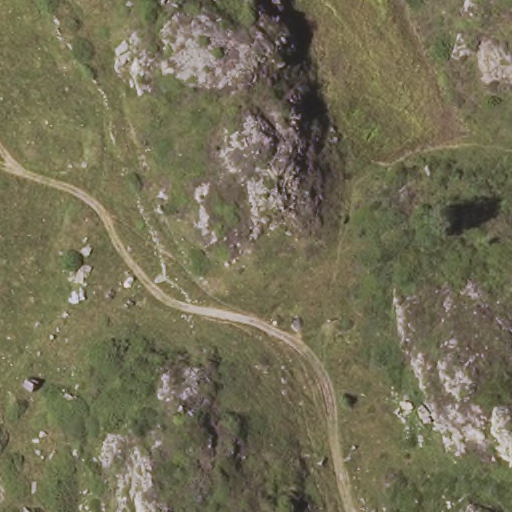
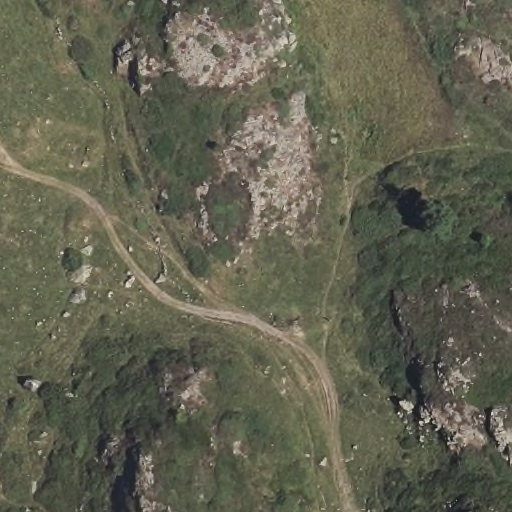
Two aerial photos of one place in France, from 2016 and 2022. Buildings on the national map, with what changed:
[]

